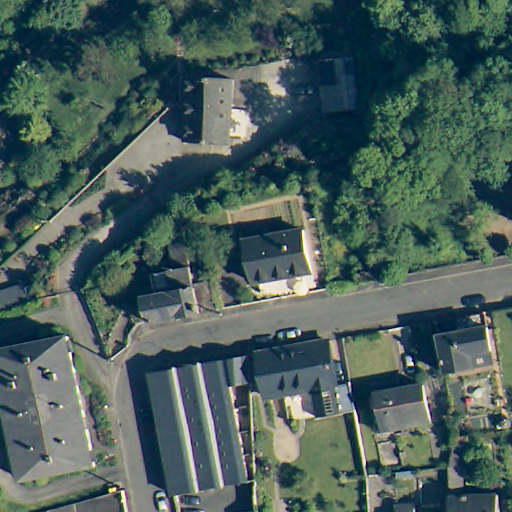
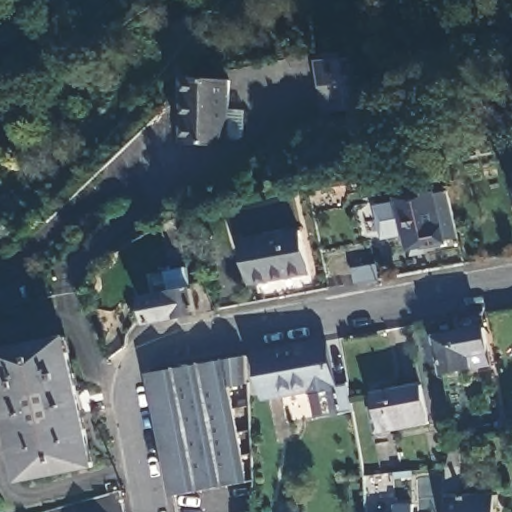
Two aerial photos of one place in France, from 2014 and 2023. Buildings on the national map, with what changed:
unchanged [(344,55),(339,113),(314,111),(318,52),(344,55)]
unchanged [(237,78),(226,141),(180,134),(189,70),(237,78)]
new [(400,199),(441,192),(453,191),(461,237),(451,238),(452,243),(428,247),(430,254),(415,256),(412,249),(409,234),(386,237),(379,203),(400,199)]
unchanged [(310,268),(254,279),(246,237),(303,226),(310,268)]
unchanged [(165,247),(150,252),(143,238),(160,233),(165,247)]
unchanged [(200,311),(182,314),(131,324),(126,299),(139,296),(138,290),(154,287),(151,271),(159,270),(156,258),(172,255),(172,256),(174,267),(178,286),(194,282),(200,311)]
demolished [(384,275),(363,279),(359,263),(381,259),(384,275)]
unchanged [(460,328),(489,324),(494,347),(474,350),(478,363),(446,368),(436,317),(457,313),(460,328)]
unchanged [(22,481),(0,401),(0,349),(58,333),(93,462),(22,481)]
unchanged [(332,387),(332,390),(309,394),(309,391),(264,399),(256,353),(324,342),(332,387)]
unchanged [(244,351),(246,378),(227,379),(230,395),(237,394),(239,406),(248,406),(249,435),(236,437),(243,478),(184,488),(169,490),(148,369),(244,351)]
unchanged [(351,396),(353,412),(314,419),(309,394),(332,390),(332,387),(348,385),(351,396)]
unchanged [(427,421),(380,429),(374,392),(418,385),(419,385),(427,421)]
unchanged [(447,512),(447,498),(494,496),(495,512),(447,512)]
unchanged [(404,505),(405,512),(387,512),(387,505),(404,505)]

